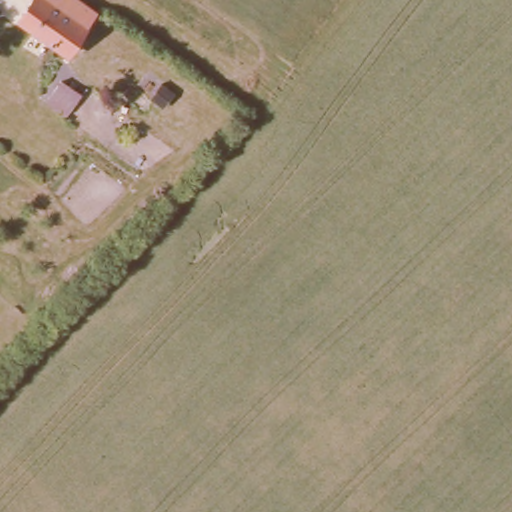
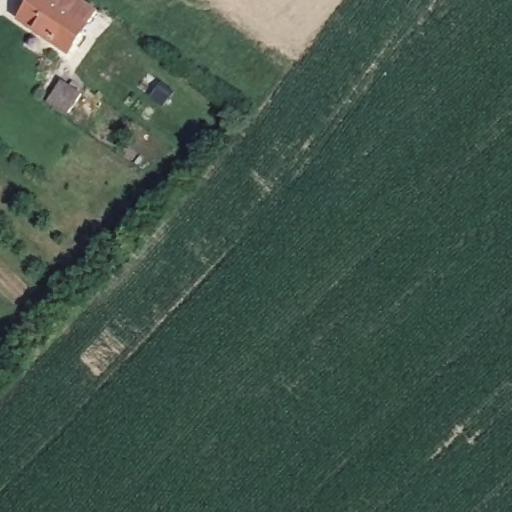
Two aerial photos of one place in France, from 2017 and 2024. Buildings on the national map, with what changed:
unchanged [(78,0),(92,10),(63,51),(12,17),(25,0),(78,0)]
unchanged [(61,79),(82,93),(68,114),(47,100),(61,79)]

